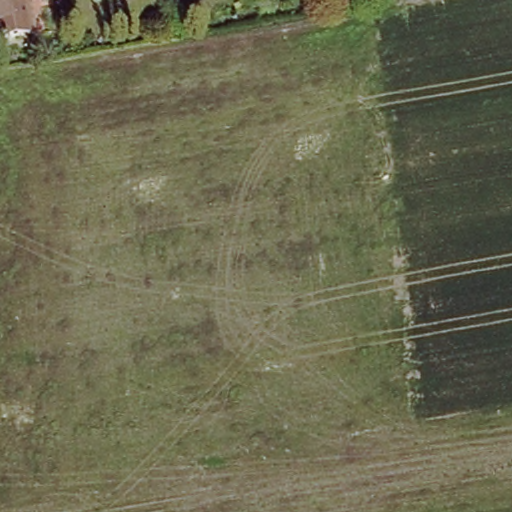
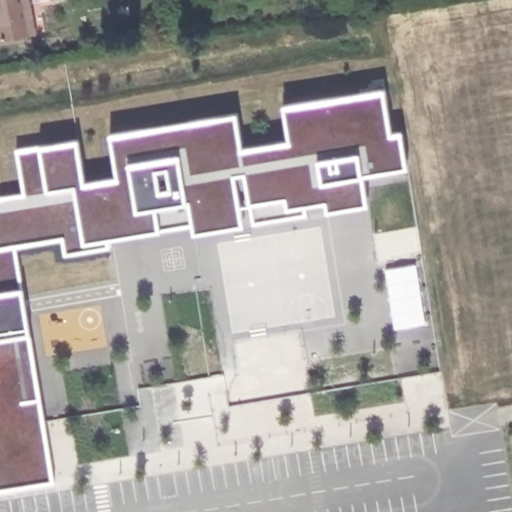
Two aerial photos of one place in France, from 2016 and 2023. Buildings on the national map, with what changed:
unchanged [(42,32),(4,39),(0,13),(0,0),(36,0),(42,32)]
new [(369,205),(326,213),(324,205),(309,207),(309,215),(253,224),(251,205),(241,207),(245,226),(193,235),(191,224),(162,229),(163,231),(113,239),(111,248),(64,256),(61,241),(16,249),(25,287),(33,332),(53,481),(0,490),(0,194),(21,191),(15,149),(40,144),(78,136),(85,179),(115,174),(109,132),(238,112),(243,145),(288,138),(282,104),(385,88),(392,131),(403,130),(409,167),(365,177),(369,205)]
new [(307,395),(208,412),(196,350),(296,333),(307,395)]

